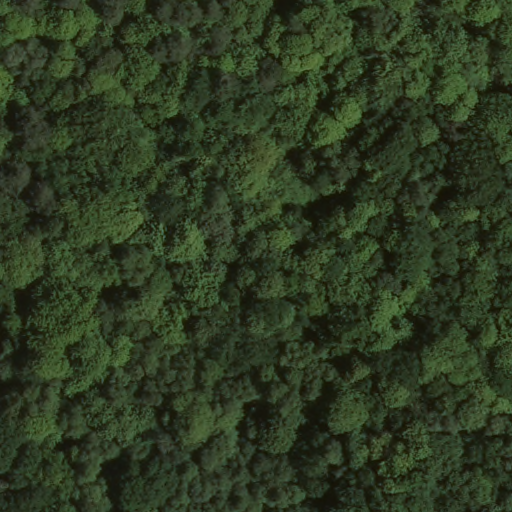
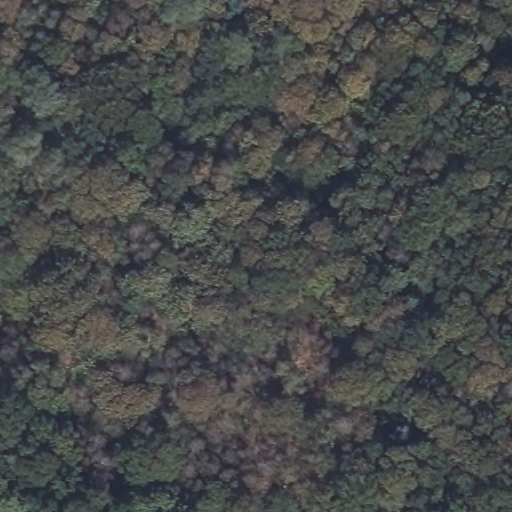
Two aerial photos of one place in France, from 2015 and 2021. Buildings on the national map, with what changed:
[]

